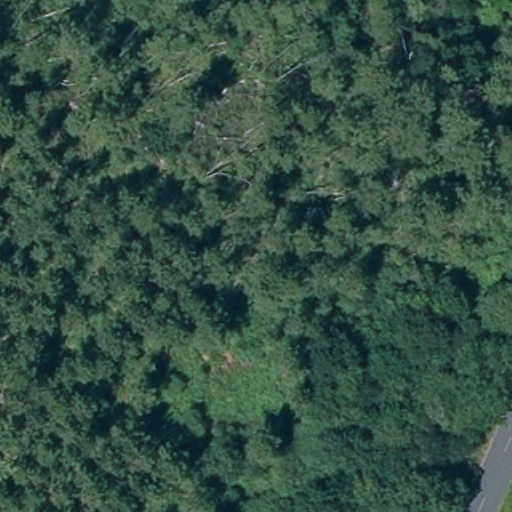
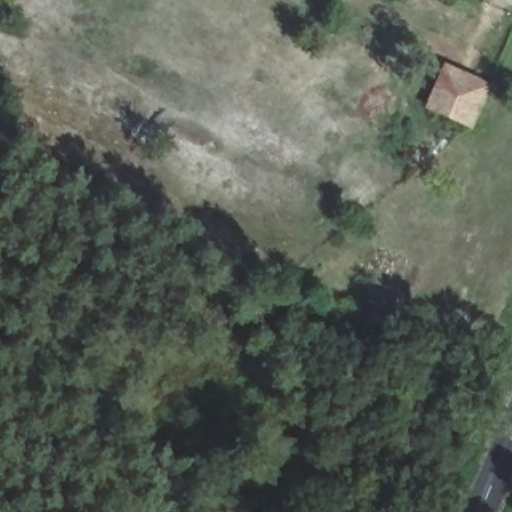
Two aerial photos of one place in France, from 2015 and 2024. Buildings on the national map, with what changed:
new [(493,85),(473,130),(424,109),(443,62),(493,85)]

